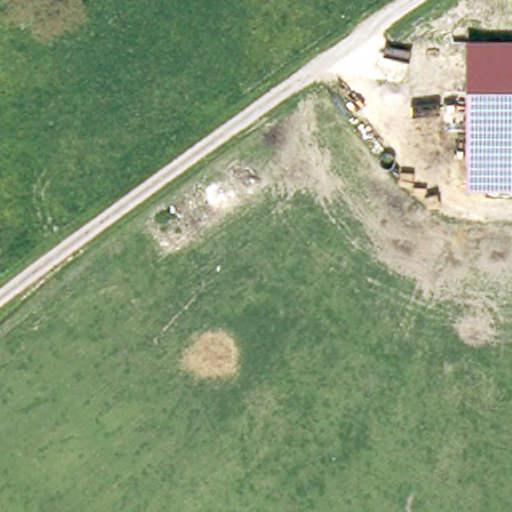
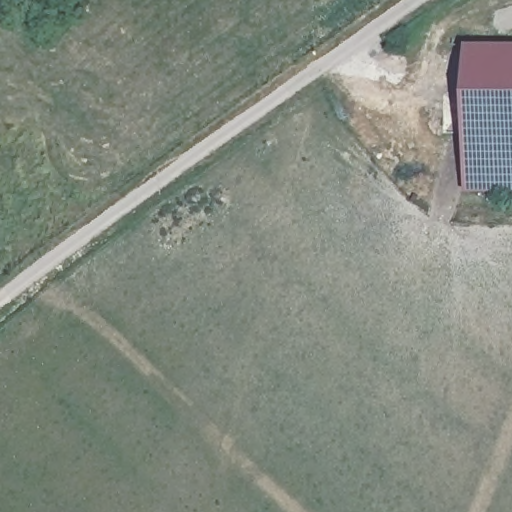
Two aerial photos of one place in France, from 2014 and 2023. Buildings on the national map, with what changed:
unchanged [(512,42),(512,192),(468,192),(467,42),(512,42)]

